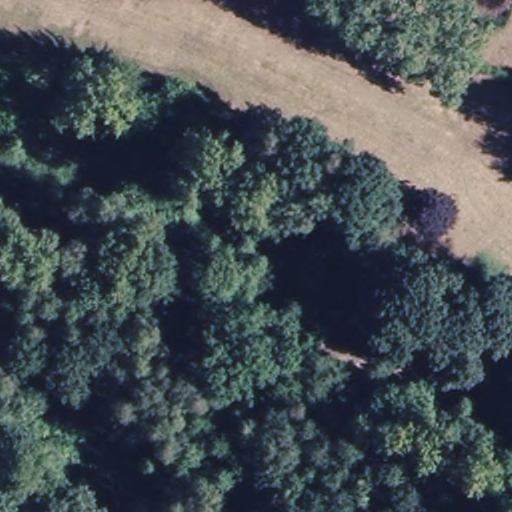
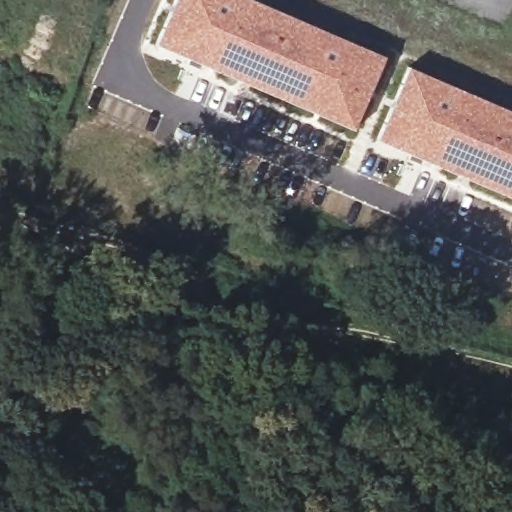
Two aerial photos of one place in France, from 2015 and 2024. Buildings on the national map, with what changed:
new [(156,45),(175,0),(250,0),(384,59),(353,130),(156,45)]
new [(408,67),(512,113),(512,197),(377,139),(408,67)]

